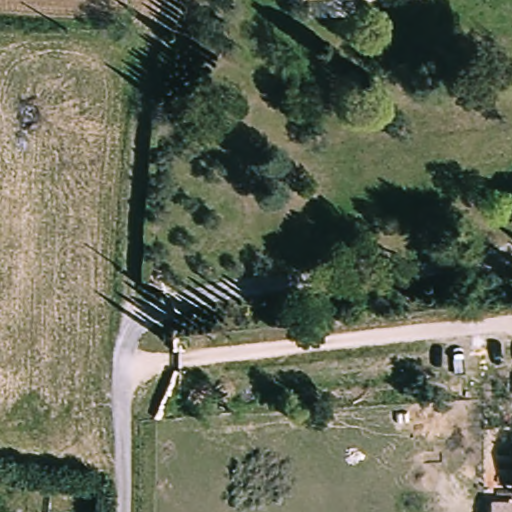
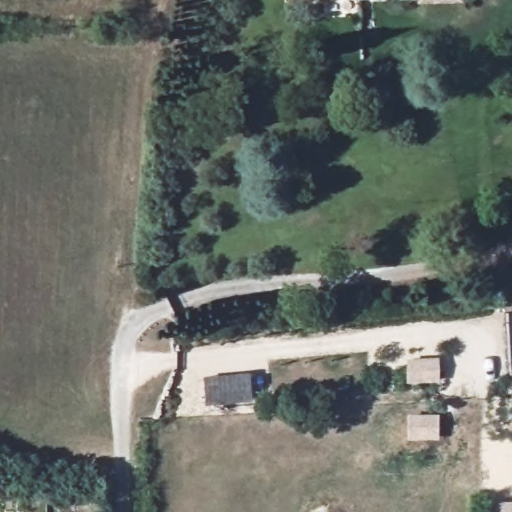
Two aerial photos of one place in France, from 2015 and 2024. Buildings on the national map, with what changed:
new [(408,358),(440,357),(440,382),(408,382),(408,358)]
new [(206,377),(253,372),(255,401),(210,406),(206,377)]
new [(408,415),(440,415),(440,440),(408,440),(408,415)]
unchanged [(512,503),(512,512),(491,512),(491,504),(512,503)]

